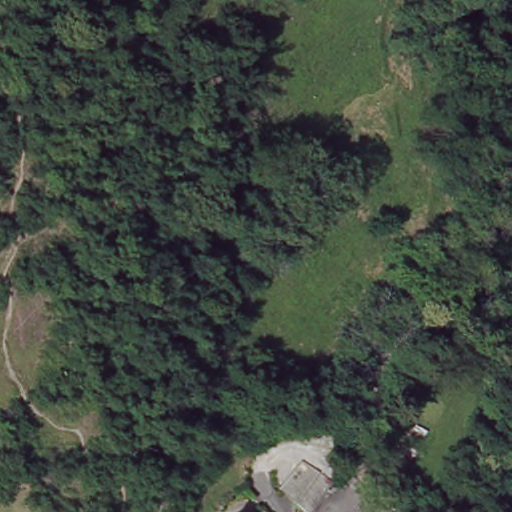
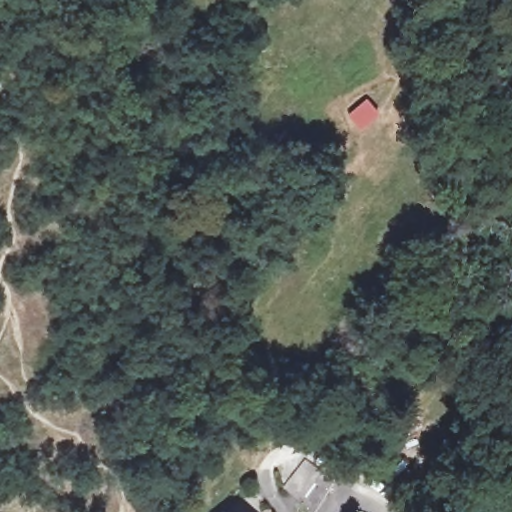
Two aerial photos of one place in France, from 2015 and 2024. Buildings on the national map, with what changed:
unchanged [(333,484),(309,512),(303,512),(277,486),(305,457),(333,484)]

